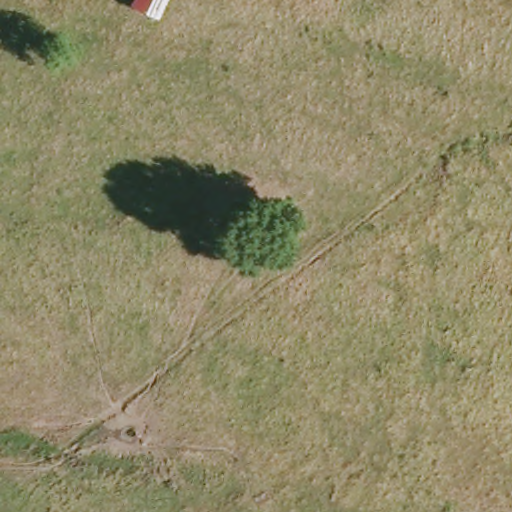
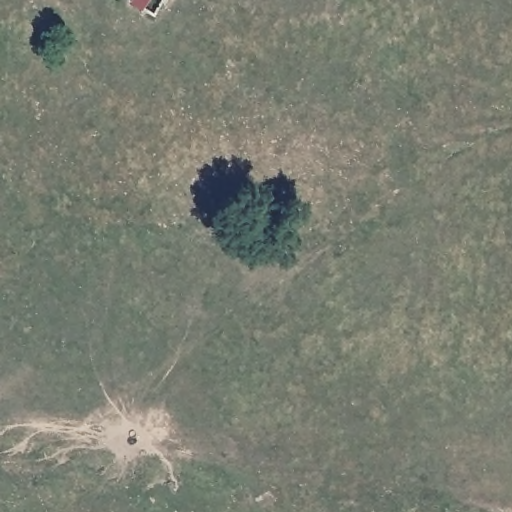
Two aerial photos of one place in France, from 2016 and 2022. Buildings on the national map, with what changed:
unchanged [(168,0),(157,17),(132,3),(134,0),(168,0)]

